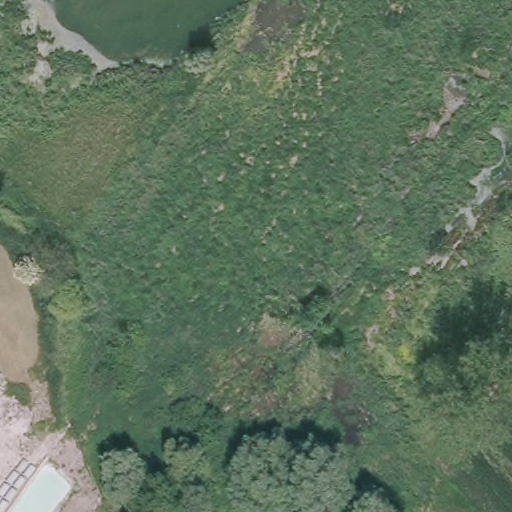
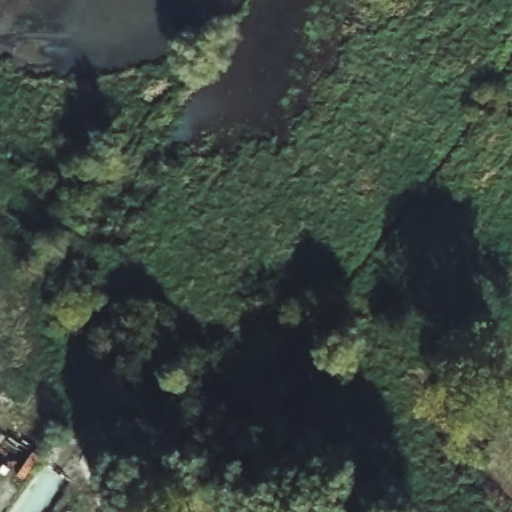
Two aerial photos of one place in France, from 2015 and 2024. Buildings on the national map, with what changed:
[]

